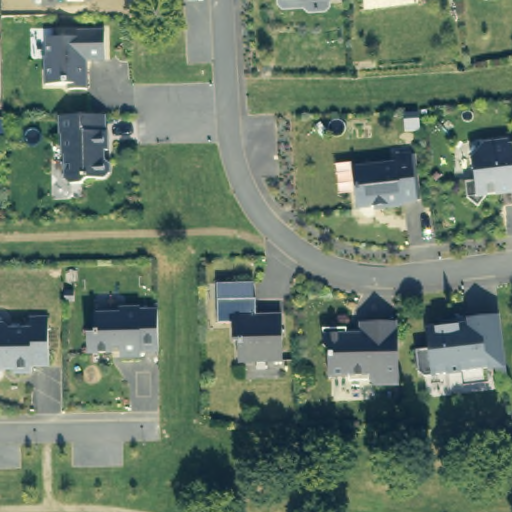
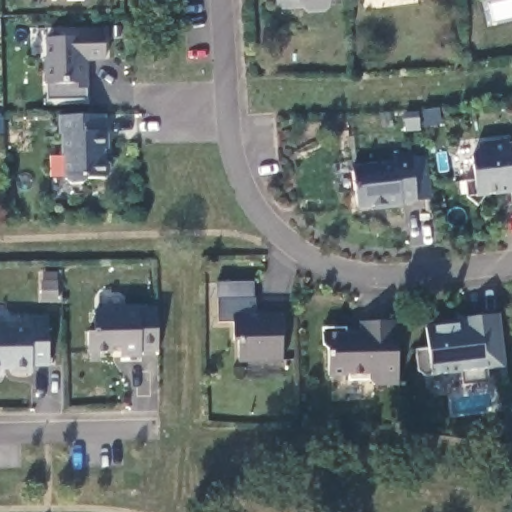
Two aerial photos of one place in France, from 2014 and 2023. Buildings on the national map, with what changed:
unchanged [(101,57),(82,57),(79,61),(82,65),(83,86),(65,86),(65,81),(41,82),(41,55),(43,55),(42,35),(50,35),(50,28),(100,27),(101,57)]
unchanged [(110,174),(105,180),(87,180),(82,185),(71,185),(66,181),(65,157),(63,157),(62,136),(60,136),(60,117),(105,116),(105,132),(107,132),(109,151),(105,151),(105,160),(110,165),(110,174)]
unchanged [(488,137),(508,135),(508,140),(512,139),(512,187),(487,190),(478,201),(467,192),(465,177),(475,176),(472,152),(479,143),(488,142),(488,137)]
unchanged [(416,201),(401,203),(401,206),(384,207),(383,205),(357,208),(352,167),(395,162),(394,155),(411,153),(416,201)]
unchanged [(256,310),(282,309),(282,355),(239,356),(238,334),(234,335),(234,317),(218,317),(217,292),(217,277),(250,276),(250,292),(256,292),(256,310)]
unchanged [(142,350),(139,355),(120,356),(119,346),(112,346),(112,351),(88,352),(88,331),(94,332),(94,311),(117,311),(117,306),(138,306),(138,307),(156,307),(157,350),(142,350)]
unchanged [(497,385),(495,367),(486,367),(488,381),(462,384),(460,371),(423,375),(417,370),(415,348),(427,347),(425,327),(440,325),(440,320),(457,318),(457,323),(467,322),(467,317),(499,313),(505,366),(507,383),(497,385)]
unchanged [(7,323),(11,328),(30,327),(29,316),(49,316),(50,365),(32,365),(32,372),(14,372),(14,367),(6,367),(1,373),(0,373),(0,323),(7,323)]
unchanged [(368,379),(348,379),(348,374),(328,375),(327,348),(322,342),(321,326),(345,326),(346,331),(360,331),(360,321),(397,320),(398,383),(373,384),(368,379)]

